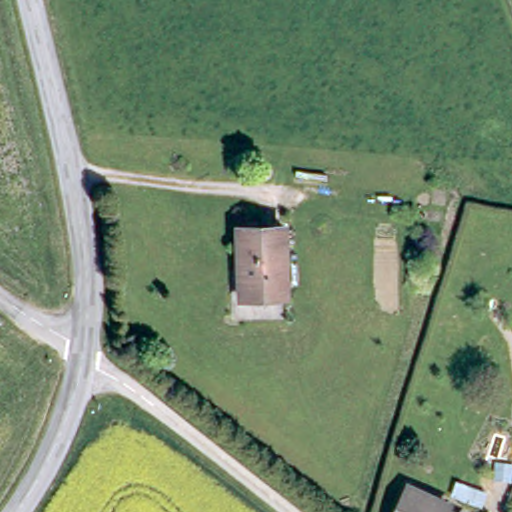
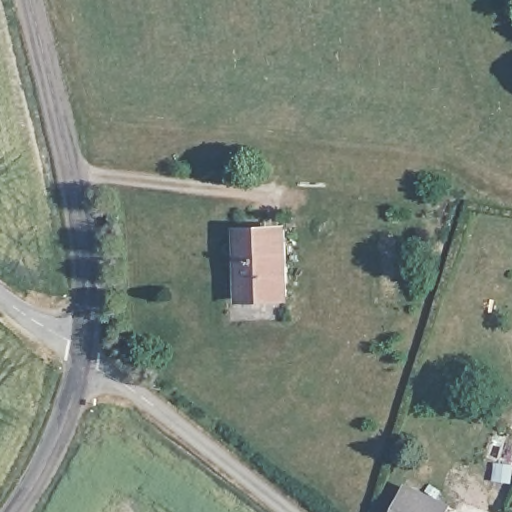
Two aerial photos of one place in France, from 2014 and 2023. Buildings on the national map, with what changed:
unchanged [(288,294),(241,295),(239,228),(287,226),(288,294)]
unchanged [(444,497),(441,504),(457,512),(386,512),(403,478),(444,497)]

